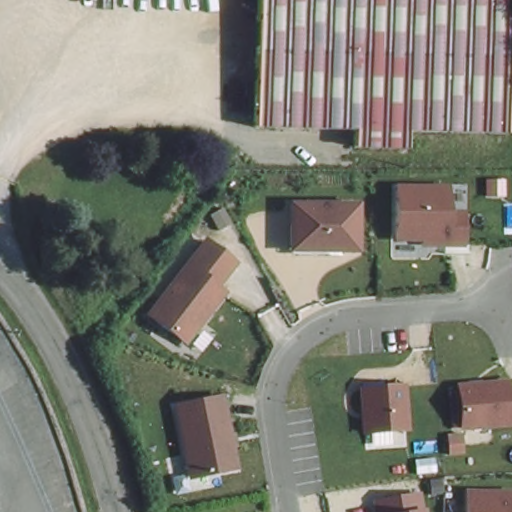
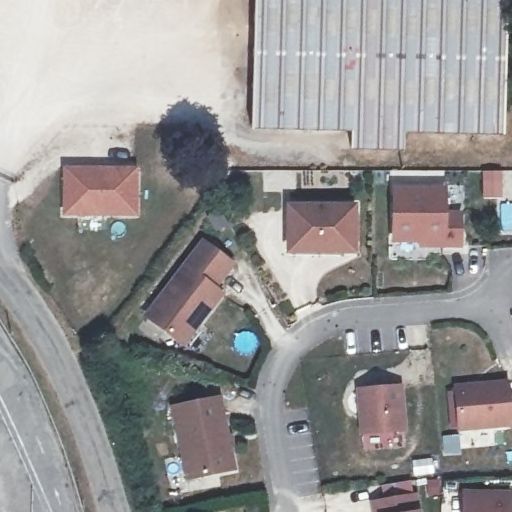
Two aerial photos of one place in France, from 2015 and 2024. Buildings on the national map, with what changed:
unchanged [(255,0),(507,0),(505,135),(405,134),(405,150),(355,149),(355,133),(253,133),(255,0)]
new [(131,174),(131,218),(62,218),(62,174),(131,174)]
unchanged [(445,211),(465,211),(465,248),(420,249),(419,240),(390,241),(390,185),(446,186),(445,211)]
unchanged [(287,193),(364,197),(361,248),(284,250),(287,193)]
unchanged [(197,234),(232,258),(217,277),(228,286),(187,341),(143,310),(197,234)]
unchanged [(455,385),(512,381),(512,427),(459,430),(455,385)]
unchanged [(409,432),(361,437),(357,389),(406,385),(409,432)]
unchanged [(168,400),(217,391),(236,464),(188,478),(168,400)]
unchanged [(485,490),(485,511),(485,512),(460,512),(462,488),(485,490)]
unchanged [(485,490),(512,494),(512,512),(492,512),(485,511),(485,490)]
unchanged [(372,512),(370,500),(417,492),(420,512),(372,512)]
unchanged [(492,512),(485,512),(485,511),(492,512)]

